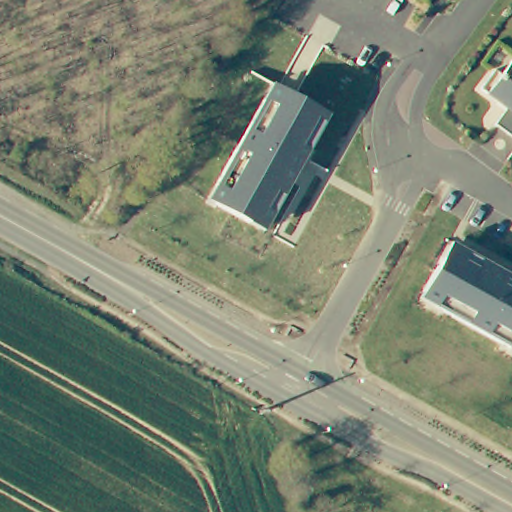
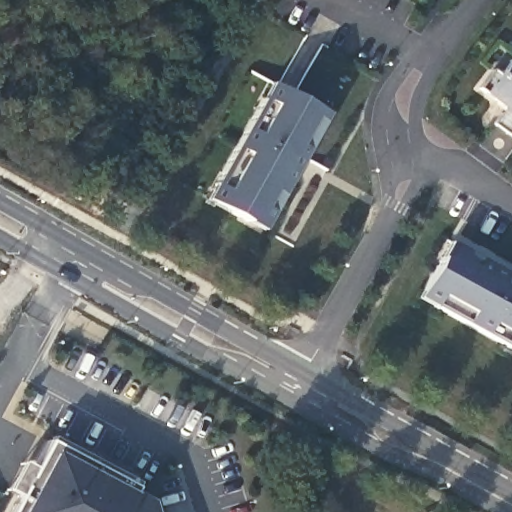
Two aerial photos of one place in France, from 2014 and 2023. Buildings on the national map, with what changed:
unchanged [(497,126),(510,110),(483,91),(498,72),(504,77),(512,67),(512,137),(497,126)]
unchanged [(263,214),(228,195),(221,192),(229,177),(274,89),(282,74),(288,77),(339,103),(282,215),(279,222),(263,214)]
unchanged [(511,344),(435,302),(420,293),(424,287),(443,253),(451,237),(458,240),(512,271),(512,345),(511,344)]
new [(52,441),(138,488),(136,492),(154,502),(157,512),(13,512),(52,441)]

